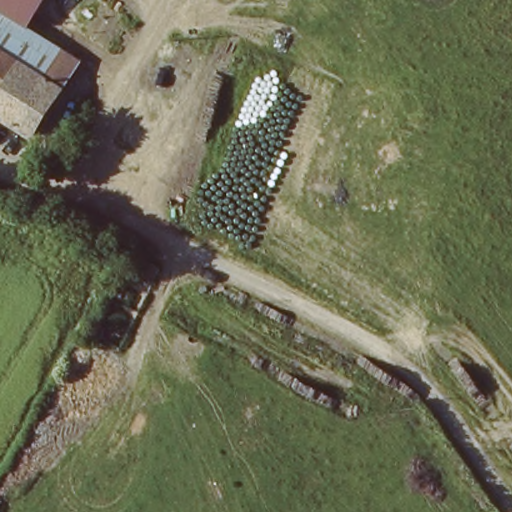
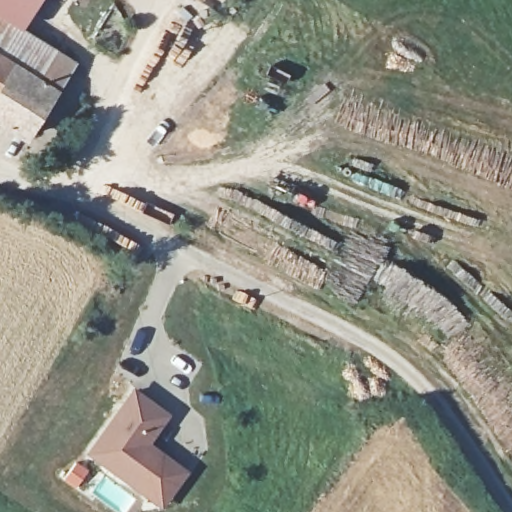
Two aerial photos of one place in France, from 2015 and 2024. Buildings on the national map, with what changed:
unchanged [(0,13),(0,0),(40,0),(23,28),(0,13)]
unchanged [(55,0),(65,0),(62,4),(55,0)]
unchanged [(75,0),(76,0),(76,1),(75,0)]
unchanged [(0,13),(81,62),(70,83),(62,96),(0,59),(0,13)]
unchanged [(0,126),(0,59),(62,96),(32,144),(0,126)]
new [(90,458),(133,396),(167,419),(145,450),(151,454),(152,452),(173,467),(185,475),(162,509),(150,500),(90,458)]

